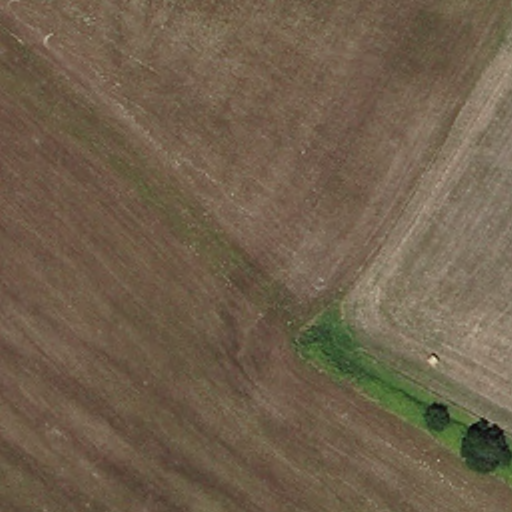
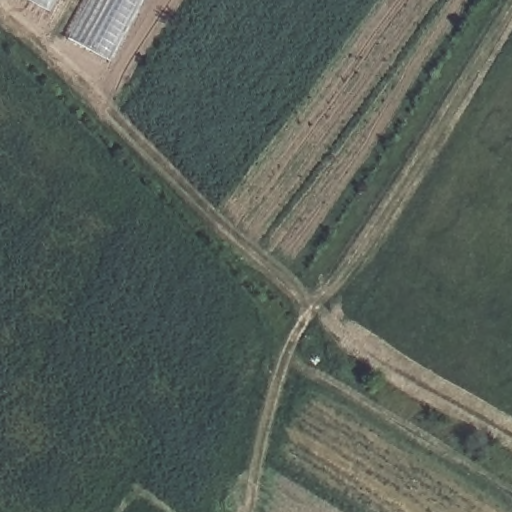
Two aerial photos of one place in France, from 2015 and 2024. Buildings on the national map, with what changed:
new [(28,0),(55,0),(49,11),(28,0)]
new [(67,37),(88,0),(143,0),(109,61),(67,37)]

